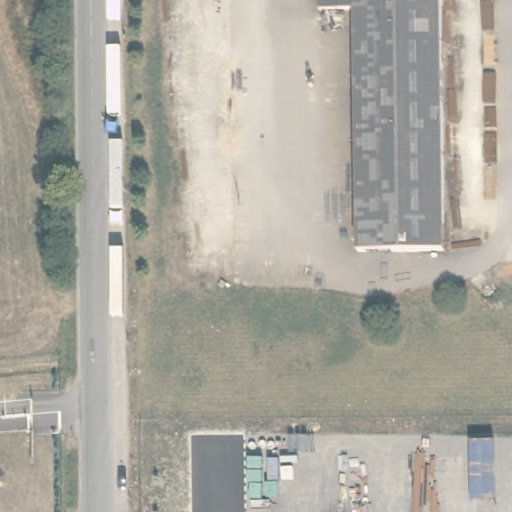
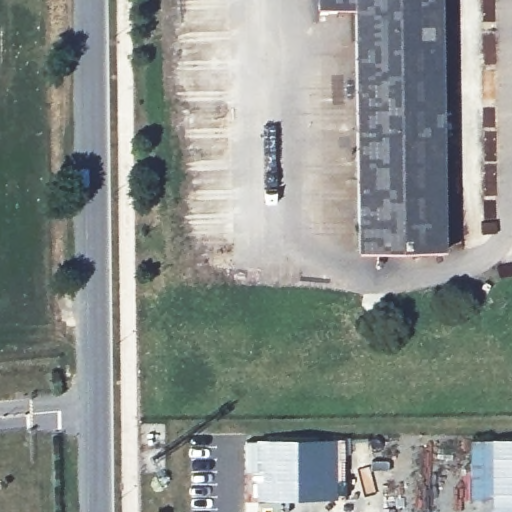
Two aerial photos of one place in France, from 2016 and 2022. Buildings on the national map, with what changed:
unchanged [(444,253),(358,252),(357,9),(320,8),(321,0),(443,0),(444,253)]
unchanged [(494,499),(471,499),(468,439),(512,438),(512,512),(494,512),(494,499)]
new [(336,439),(337,499),(255,501),(254,440),(336,439)]

